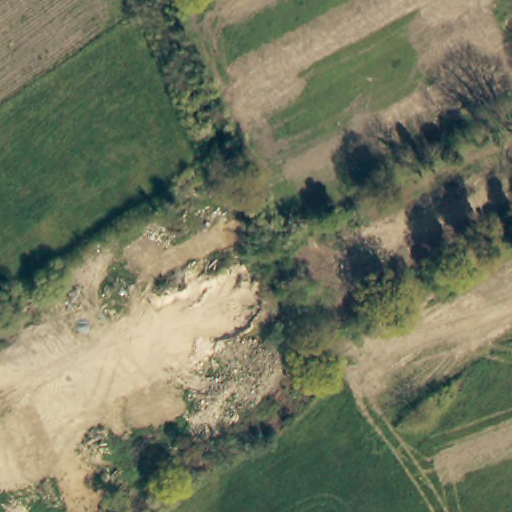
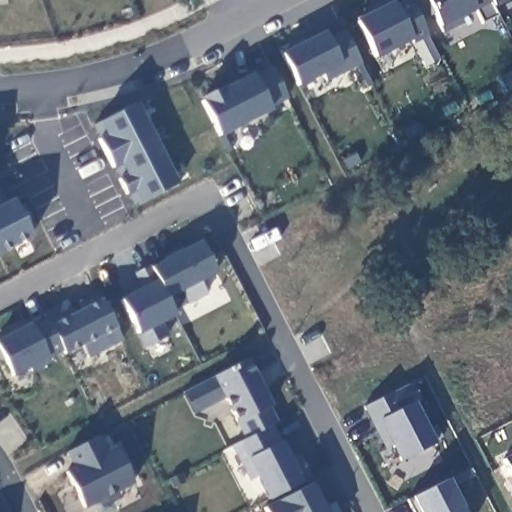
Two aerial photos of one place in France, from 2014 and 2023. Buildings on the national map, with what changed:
new [(424,67),(412,40),(376,56),(357,20),(394,1),(397,0),(409,0),(438,60),(424,67)]
new [(499,17),(483,24),(476,10),(460,17),(463,24),(444,32),(435,15),(428,18),(419,0),(490,0),(499,17)]
new [(491,0),(506,0),(494,6),(491,0)]
new [(325,81),(322,74),(299,85),(283,51),(325,31),(330,39),(345,30),(361,63),(325,81)]
new [(268,106),(270,111),(220,135),(199,99),(253,73),(256,78),(272,68),(286,98),(268,106)]
new [(512,88),(506,91),(499,78),(512,71),(512,88)]
new [(137,101),(178,182),(136,203),(130,191),(128,192),(120,177),(122,175),(116,165),(114,165),(99,137),(102,136),(95,123),(137,101)]
new [(356,151),(361,160),(347,166),(343,158),(356,151)]
new [(6,203),(14,199),(19,208),(26,204),(35,221),(28,225),(33,235),(0,251),(0,192),(6,203)]
new [(166,298),(176,316),(163,323),(169,335),(145,347),(139,335),(120,296),(157,280),(151,266),(201,240),(217,272),(166,298)]
new [(88,357),(81,345),(16,380),(0,350),(0,339),(47,316),(45,311),(65,300),(73,313),(102,297),(116,327),(122,340),(88,357)]
new [(272,425),(283,440),(293,460),(300,455),(311,476),(304,482),(270,500),(248,457),(238,441),(244,438),(224,397),(193,412),(183,392),(249,357),(274,404),(269,406),(277,420),(272,425)]
new [(400,461),(392,445),(383,450),(362,408),(410,380),(420,400),(415,402),(436,443),(400,461)]
new [(85,507),(66,467),(73,465),(66,451),(97,432),(104,448),(114,445),(134,483),(85,507)]
new [(512,455),(512,475),(504,460),(512,455)]
new [(449,477),(466,512),(422,512),(414,512),(409,498),(449,477)]
new [(312,481),(326,511),(336,506),(339,512),(267,512),(264,506),(312,481)]

